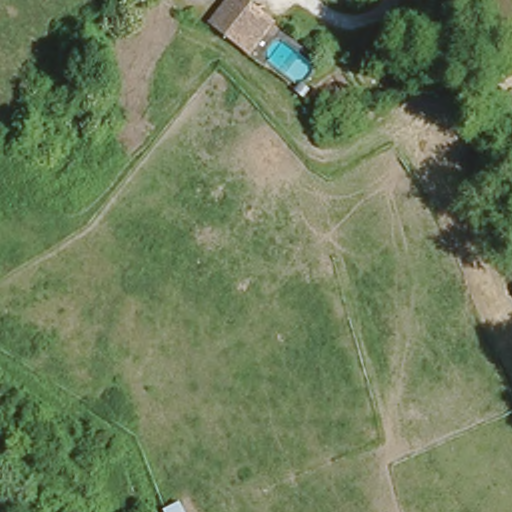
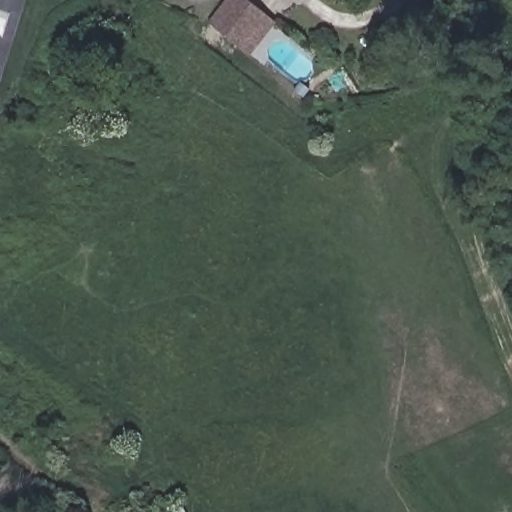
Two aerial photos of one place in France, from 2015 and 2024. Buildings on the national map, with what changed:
unchanged [(232,0),(245,0),(267,18),(239,49),(211,24),(232,0)]

